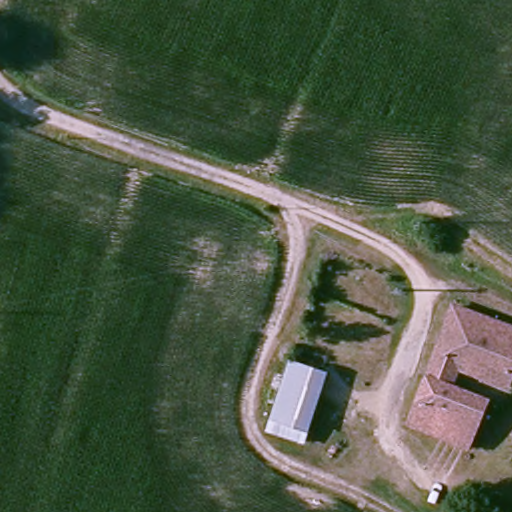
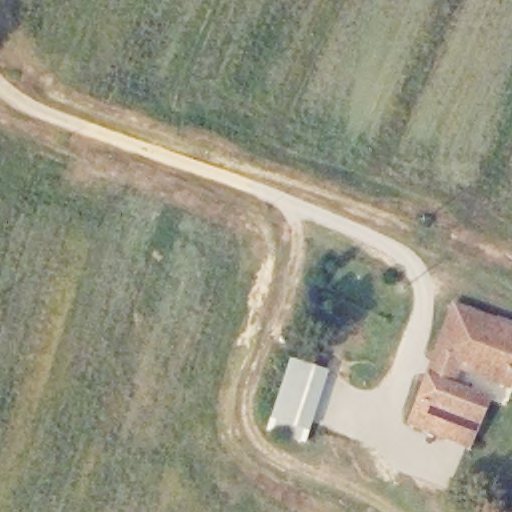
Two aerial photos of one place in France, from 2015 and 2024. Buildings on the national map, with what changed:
unchanged [(483,407),(475,428),(467,451),(403,428),(446,309),(448,310),(512,332),(512,376),(508,390),(452,370),(444,392),(483,407)]
unchanged [(299,445),(259,432),(284,360),(323,373),(299,445)]

